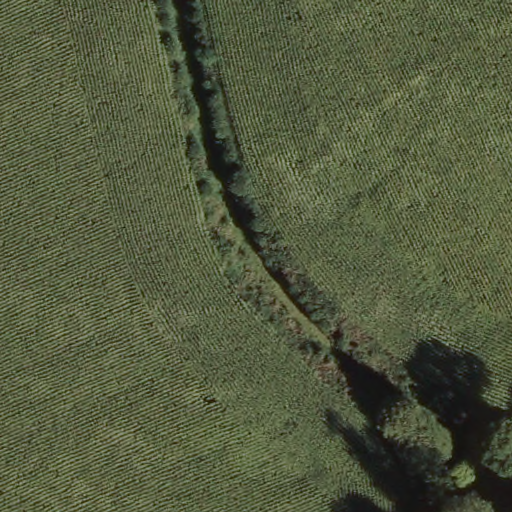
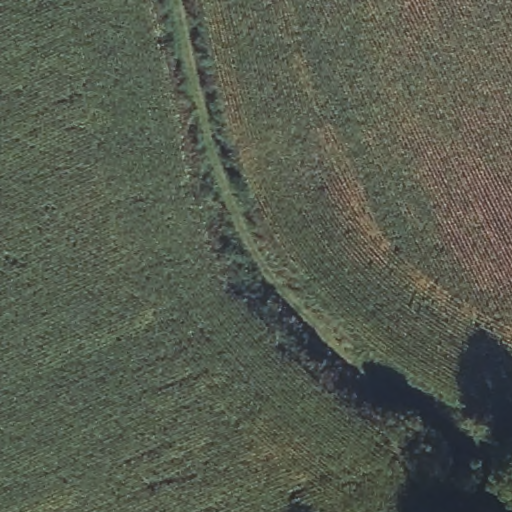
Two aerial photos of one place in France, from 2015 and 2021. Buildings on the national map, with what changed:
unchanged [(474,504),(430,511),(425,475),(479,465),(482,494),(472,496),(474,504)]

